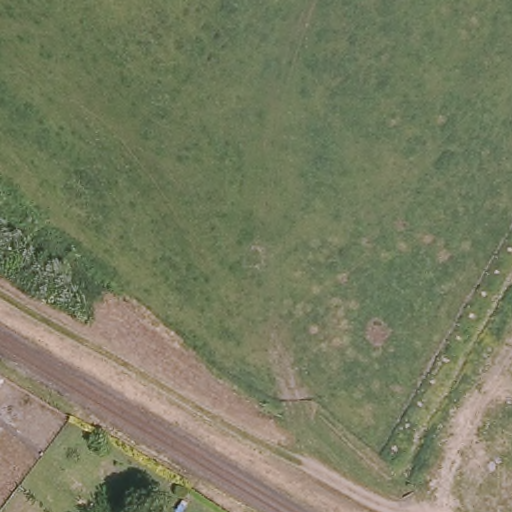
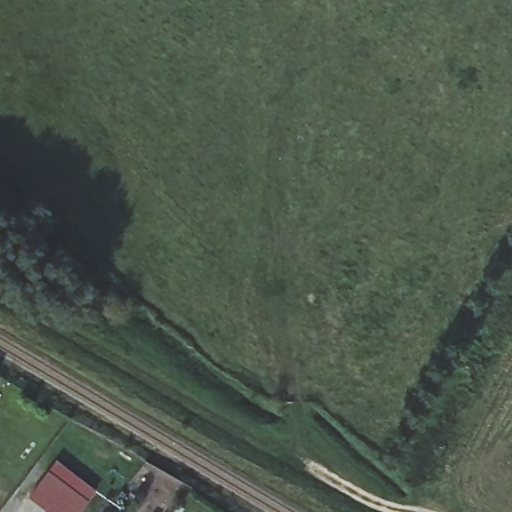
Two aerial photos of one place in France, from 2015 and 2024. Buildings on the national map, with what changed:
new [(56,461),(96,492),(81,512),(48,512),(29,497),(56,461)]

